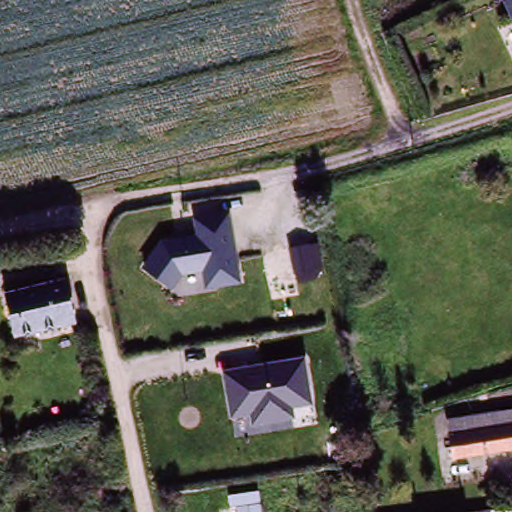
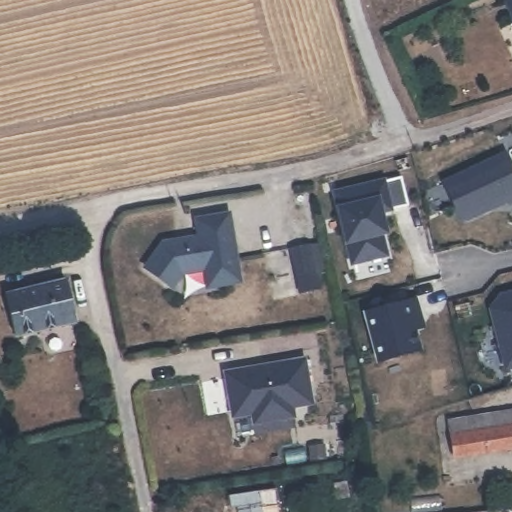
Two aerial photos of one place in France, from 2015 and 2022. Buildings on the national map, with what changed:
unchanged [(512,0),(512,9),(509,2),(512,0)]
new [(512,165),(512,204),(509,198),(466,218),(462,219),(446,184),(508,155),(512,165)]
new [(383,237),(389,258),(354,267),(336,195),(386,183),(393,212),(383,214),(389,235),(383,237)]
unchanged [(231,208),(245,286),(205,292),(201,272),(182,275),(170,293),(142,268),(162,240),(196,234),(193,217),(231,208)]
unchanged [(16,338),(6,294),(66,282),(76,325),(16,338)]
new [(512,296),(512,370),(509,371),(494,311),(504,298),(512,296)]
new [(419,302),(424,319),(414,322),(423,353),(382,364),(368,316),(419,302)]
unchanged [(303,359),(312,406),(293,409),(295,421),(253,427),(249,415),(228,417),(220,373),(303,359)]
unchanged [(448,423),(512,413),(512,452),(452,461),(448,423)]
new [(277,488),(281,512),(229,512),(227,494),(277,488)]
unchanged [(512,512),(493,512),(512,510),(512,512)]

